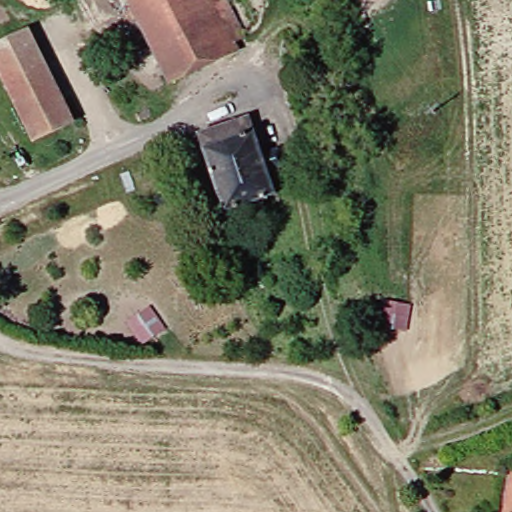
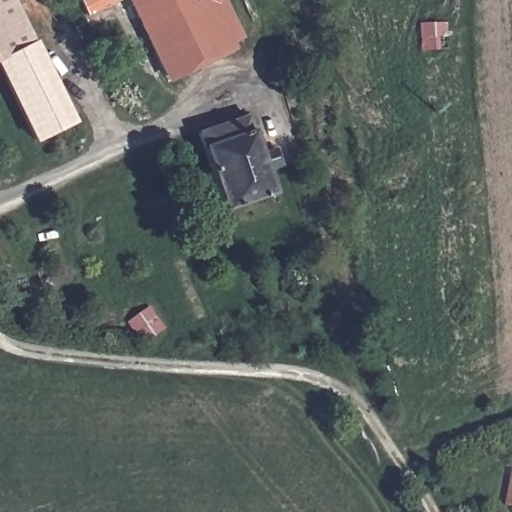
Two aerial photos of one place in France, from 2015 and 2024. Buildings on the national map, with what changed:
new [(0,49),(0,0),(14,0),(29,35),(0,49)]
unchanged [(132,0),(224,0),(241,35),(230,40),(236,51),(206,65),(172,81),(132,0)]
unchanged [(38,139),(0,63),(0,49),(29,35),(72,121),(38,139)]
unchanged [(232,208),(206,136),(253,121),(265,156),(281,152),(288,171),(272,177),(277,193),(232,208)]
unchanged [(510,479),(512,479),(512,512),(508,512),(510,479)]

